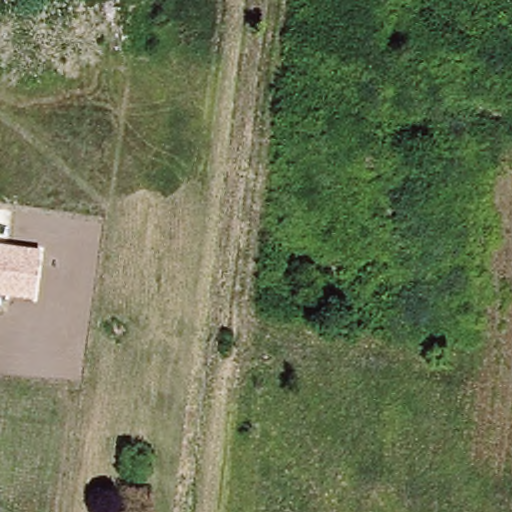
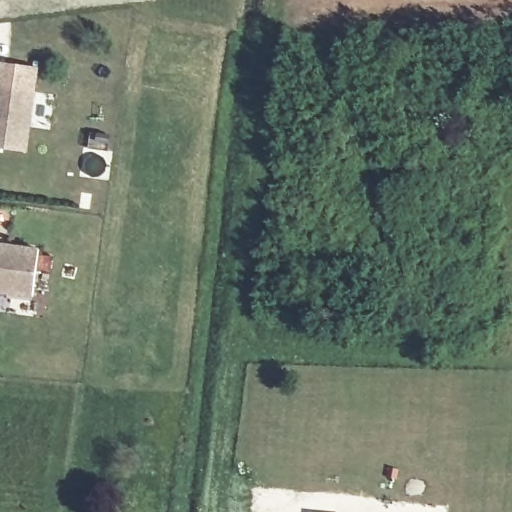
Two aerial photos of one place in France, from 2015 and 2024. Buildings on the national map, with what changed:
new [(36,68),(32,92),(24,153),(0,149),(0,63),(36,68)]
unchanged [(39,248),(34,297),(0,293),(0,244),(39,248)]

